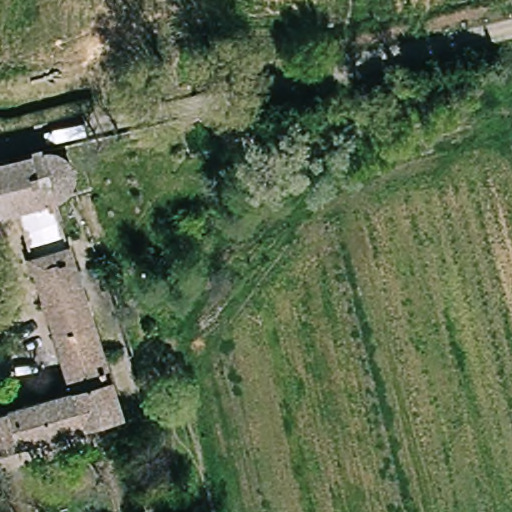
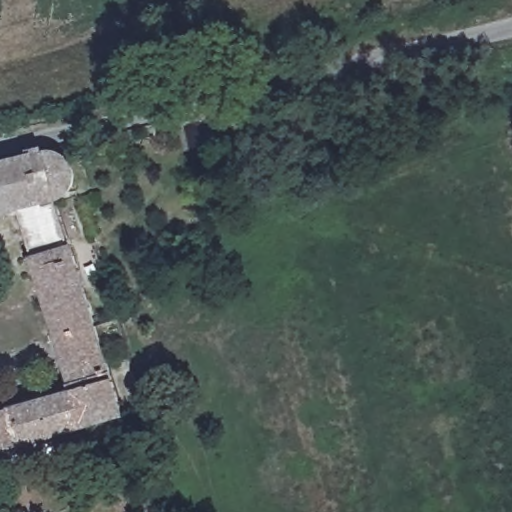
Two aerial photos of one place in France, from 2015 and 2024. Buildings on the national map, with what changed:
unchanged [(65,156),(70,158),(72,161),(75,163),(78,167),(80,171),(82,177),(82,182),(81,186),(79,192),(75,196),(72,199),(67,201),(59,204),(100,330),(60,342),(20,213),(0,218),(0,164),(55,151),(59,153),(65,156)]
unchanged [(0,456),(0,414),(76,392),(60,342),(100,330),(130,420),(0,456)]

